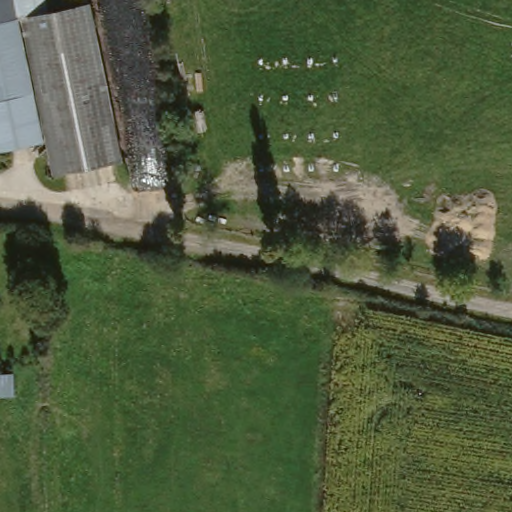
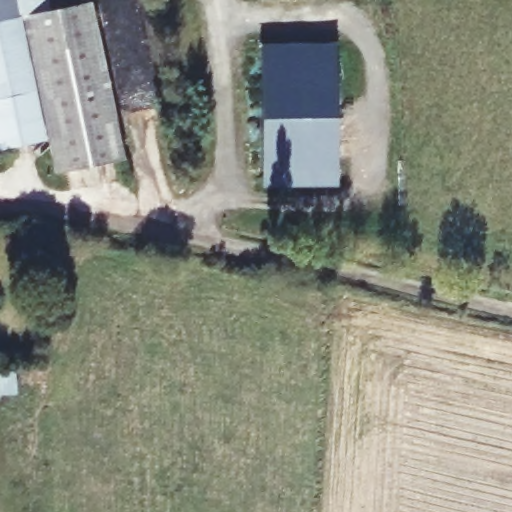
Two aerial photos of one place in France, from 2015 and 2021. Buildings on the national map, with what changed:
unchanged [(0,2),(0,0),(35,0),(40,17),(81,4),(126,150),(56,173),(46,135),(13,25),(7,26),(0,2)]
unchanged [(0,29),(0,2),(7,26),(0,29)]
unchanged [(0,149),(0,29),(7,26),(13,25),(46,135),(0,149)]
new [(338,51),(340,162),(263,163),(261,52),(338,51)]

